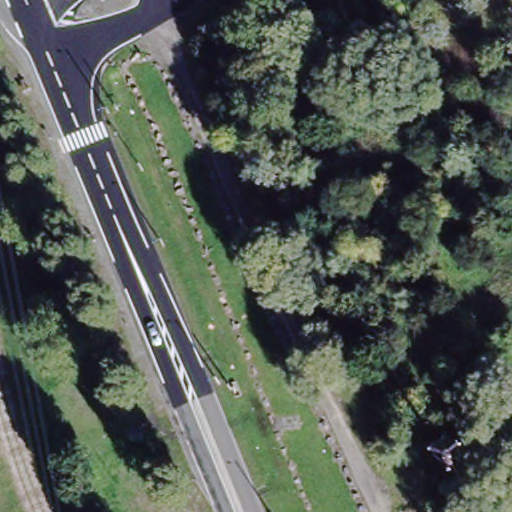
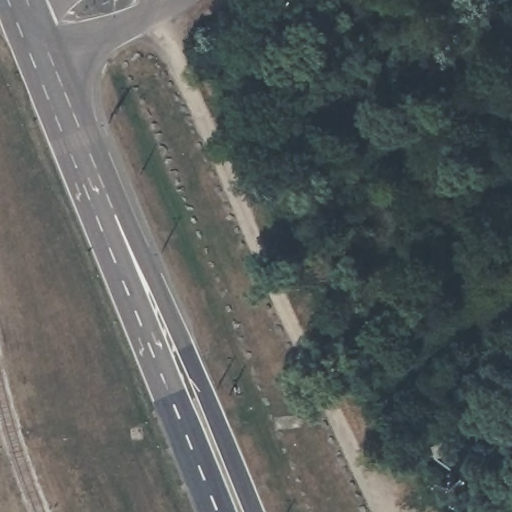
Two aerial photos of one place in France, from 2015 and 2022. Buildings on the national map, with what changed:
unchanged [(448,440),(454,452),(437,459),(432,446),(448,440)]

